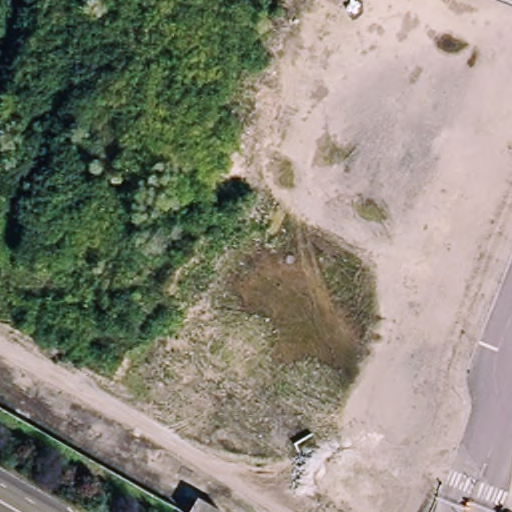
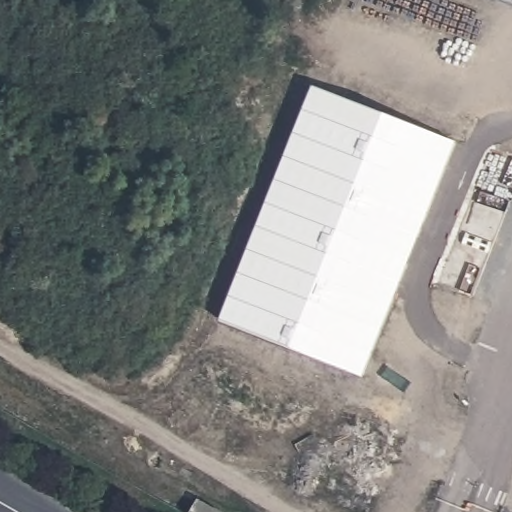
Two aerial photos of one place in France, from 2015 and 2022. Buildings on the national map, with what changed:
new [(316,78),(471,143),(386,408),(220,324),(316,78)]
unchanged [(199,495),(228,511),(227,512),(189,512),(199,495)]

